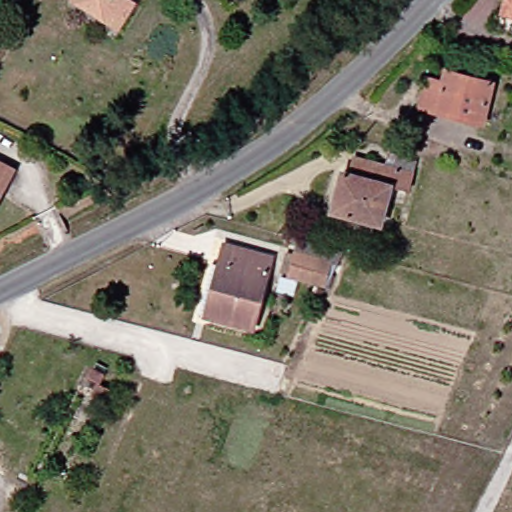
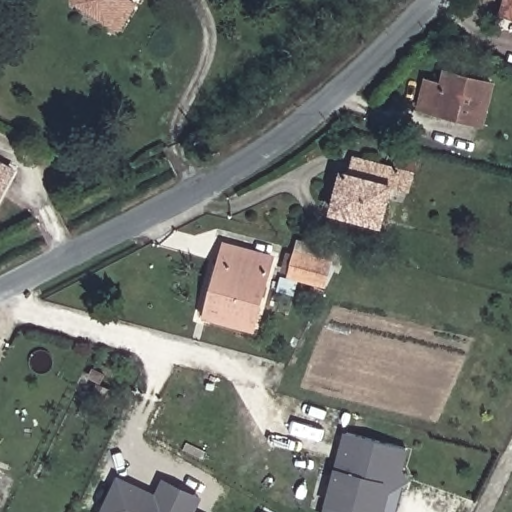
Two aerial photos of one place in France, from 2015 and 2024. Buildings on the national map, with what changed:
unchanged [(100,28),(63,5),(66,0),(117,0),(100,28)]
unchanged [(494,17),(498,0),(512,0),(512,22),(494,17)]
unchanged [(488,83),(478,122),(415,106),(423,78),(439,82),(442,71),(488,83)]
unchanged [(403,193),(386,189),(376,228),(328,216),(338,177),(345,179),(350,162),(382,170),(385,159),(410,165),(403,193)]
unchanged [(0,177),(0,169),(4,170),(0,177)]
unchanged [(324,274),(290,265),(296,243),(330,252),(324,274)]
unchanged [(267,257),(248,328),(201,316),(203,308),(193,306),(205,261),(215,264),(221,244),(267,257)]
unchanged [(106,401),(91,395),(97,382),(111,389),(106,401)]
new [(400,469),(383,478),(389,487),(382,512),(326,512),(347,431),(406,447),(400,469)]
new [(405,477),(395,512),(382,512),(389,487),(383,478),(400,469),(405,477)]
new [(156,493),(163,479),(203,496),(198,512),(102,512),(118,476),(156,493)]

